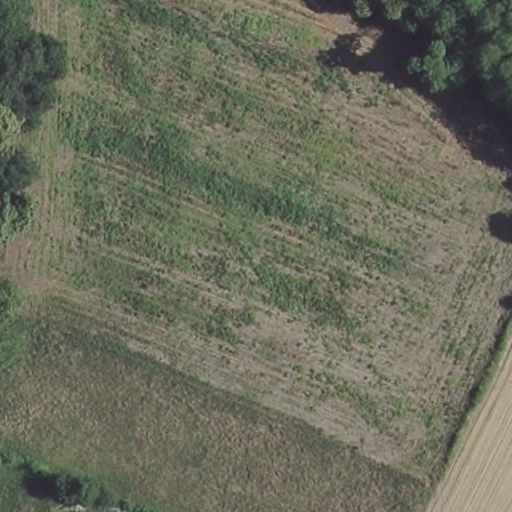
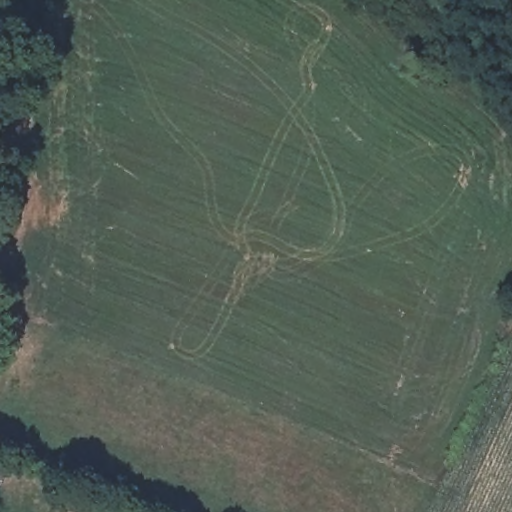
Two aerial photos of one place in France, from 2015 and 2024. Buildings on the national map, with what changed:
[]

